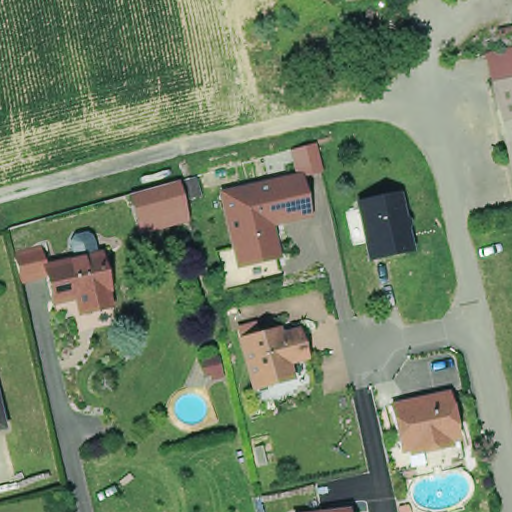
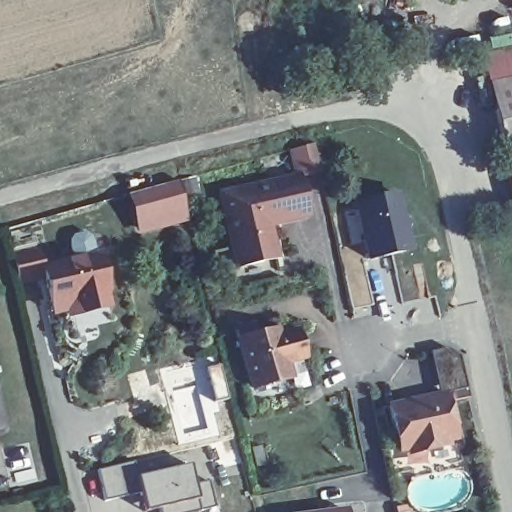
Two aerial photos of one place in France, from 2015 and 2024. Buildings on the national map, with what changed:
unchanged [(492,83),(487,60),(512,54),(512,79),(492,83)]
unchanged [(509,166),(492,83),(512,79),(512,165),(509,166)]
unchanged [(512,165),(512,183),(509,166),(512,165)]
unchanged [(273,254),(236,263),(218,191),(296,172),(305,211),(265,221),(273,254)]
unchanged [(178,182),(189,222),(138,234),(131,193),(178,182)]
unchanged [(399,251),(365,259),(361,242),(346,246),(341,214),(356,211),(354,204),(394,195),(401,218),(406,224),(403,233),(407,249),(399,251)]
unchanged [(78,305),(76,298),(55,302),(49,276),(23,282),(16,254),(43,248),(47,265),(101,253),(109,289),(106,290),(108,297),(111,310),(80,317),(78,305)]
unchanged [(252,390),(241,341),(237,330),(248,327),(251,338),(271,334),(279,331),(281,337),(298,332),(304,360),(288,365),(290,373),(293,380),(271,386),(252,390)]
unchanged [(208,372),(203,358),(217,355),(221,369),(208,372)]
unchanged [(0,385),(12,434),(0,437),(0,385)]
unchanged [(443,391),(453,435),(395,448),(386,404),(443,391)]
new [(136,460),(140,473),(136,475),(138,493),(103,500),(96,469),(136,460)]
new [(140,473),(187,463),(192,484),(207,481),(213,506),(191,512),(157,512),(156,508),(143,511),(138,493),(136,475),(140,473)]
unchanged [(407,512),(398,512),(396,504),(404,502),(407,512)]
unchanged [(339,510),(340,512),(325,512),(339,510)]

